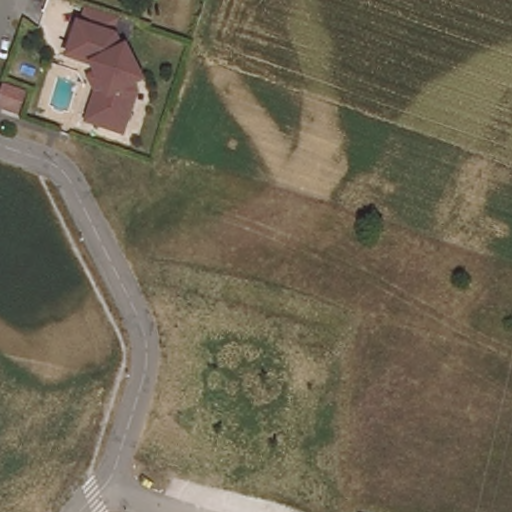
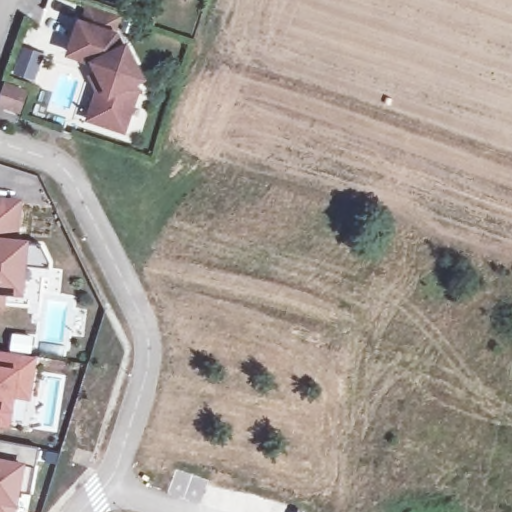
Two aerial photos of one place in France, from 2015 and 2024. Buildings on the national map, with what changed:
unchanged [(90,87),(87,68),(97,65),(94,56),(66,49),(77,16),(111,27),(115,39),(125,40),(137,71),(132,74),(135,85),(121,125),(95,115),(83,111),(90,87)]
unchanged [(19,111),(0,104),(0,79),(0,77),(27,89),(19,111)]
new [(20,199),(17,238),(44,240),(53,257),(52,264),(25,261),(23,287),(6,286),(4,304),(0,304),(0,197),(20,199)]
new [(36,356),(30,400),(15,396),(12,411),(10,427),(0,426),(0,350),(36,356)]
new [(39,448),(32,492),(20,490),(17,505),(16,512),(0,512),(0,441),(39,448)]

